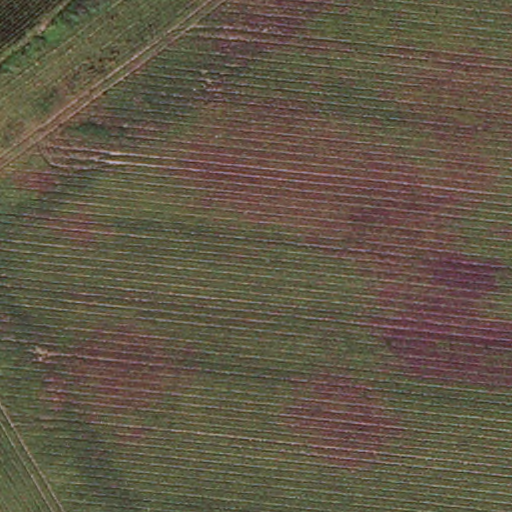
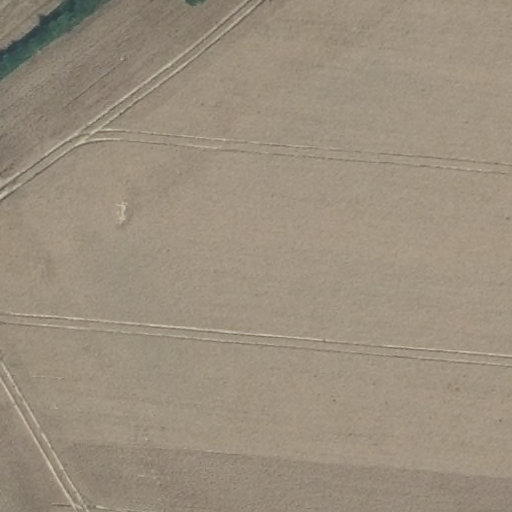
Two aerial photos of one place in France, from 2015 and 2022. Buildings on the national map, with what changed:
[]

